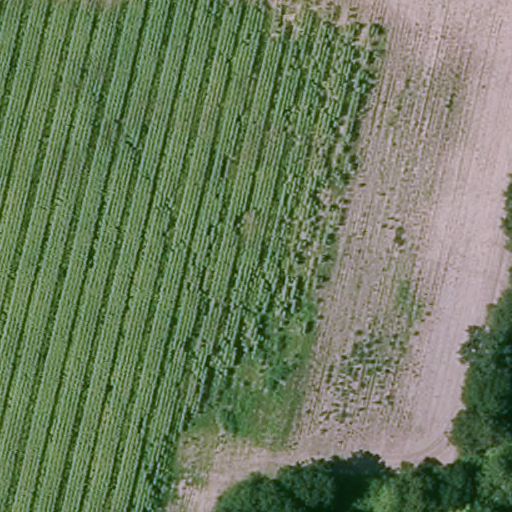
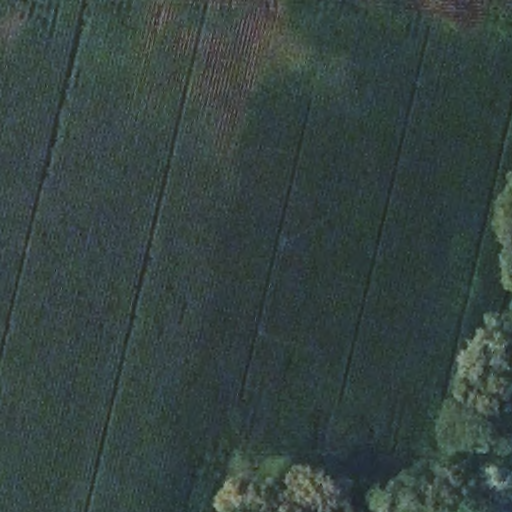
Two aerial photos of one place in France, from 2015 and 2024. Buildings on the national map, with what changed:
unchanged [(417,512),(392,512),(392,496),(417,499),(417,512)]

